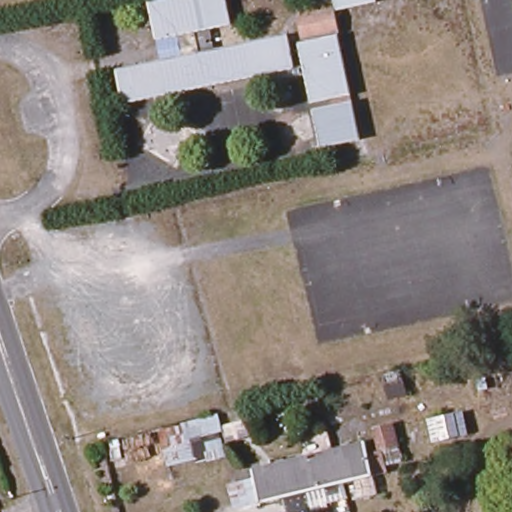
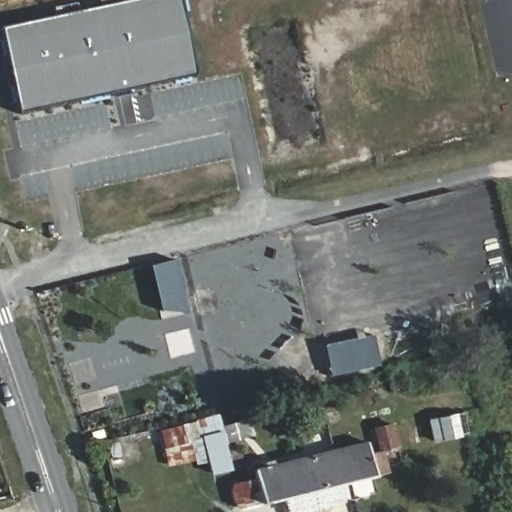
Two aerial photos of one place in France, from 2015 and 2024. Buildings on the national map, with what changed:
new [(193,72),(15,110),(0,39),(0,22),(105,0),(179,0),(193,72)]
demolished [(227,24),(204,29),(209,51),(194,54),(201,86),(119,103),(113,71),(179,57),(175,35),(152,39),(144,2),(151,0),(222,0),(227,24)]
demolished [(337,0),(377,0),(378,5),(340,13),(337,0)]
demolished [(336,35),(304,42),(300,22),(332,15),(336,35)]
demolished [(289,67),(244,77),(238,45),(283,35),(289,67)]
demolished [(348,94),(311,102),(304,64),(341,56),(348,94)]
demolished [(358,138),(320,146),(313,108),(350,101),(358,138)]
new [(148,265),(174,260),(185,309),(160,315),(148,265)]
new [(372,336),(378,366),(328,375),(323,345),(372,336)]
unchanged [(231,414),(240,433),(189,444),(192,456),(168,463),(154,436),(231,414)]
unchanged [(457,431),(434,438),(429,420),(452,416),(457,431)]
unchanged [(369,474),(229,507),(224,478),(360,449),(369,474)]

